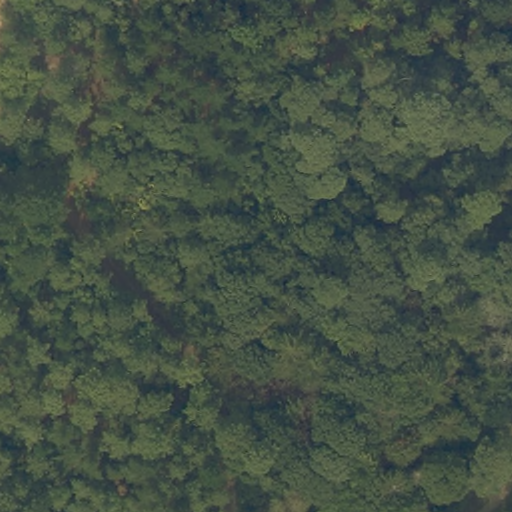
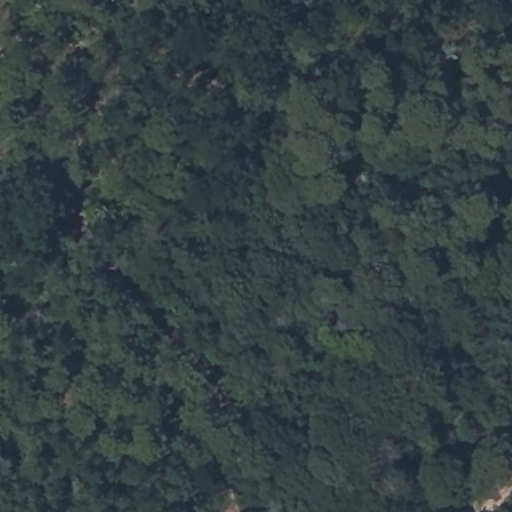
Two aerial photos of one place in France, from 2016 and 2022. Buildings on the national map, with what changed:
[]

